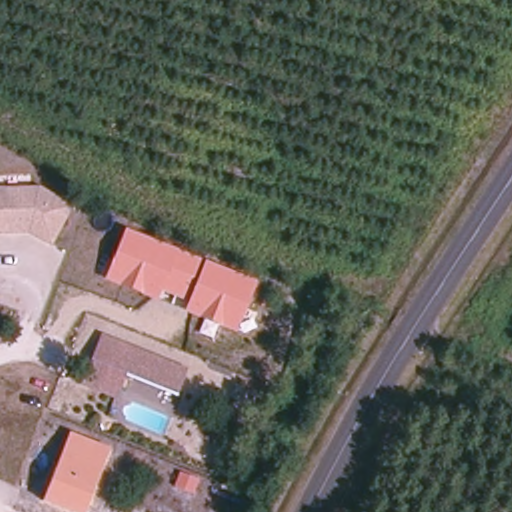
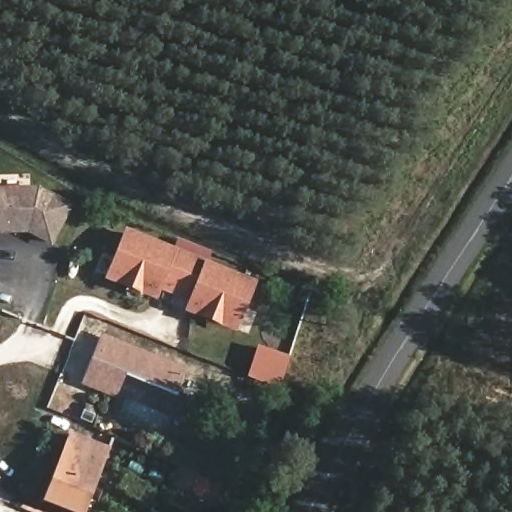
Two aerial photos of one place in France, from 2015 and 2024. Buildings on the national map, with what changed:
unchanged [(70,199),(51,235),(29,223),(0,224),(0,183),(39,182),(70,199)]
unchanged [(237,332),(184,312),(187,302),(163,292),(159,301),(105,281),(124,229),(258,280),(237,332)]
unchanged [(99,336),(182,370),(172,393),(123,373),(114,396),(80,382),(99,336)]
new [(259,346),(293,360),(280,391),(246,377),(259,346)]
unchanged [(56,465),(69,432),(106,446),(80,512),(76,512),(39,497),(53,463),(56,465)]

